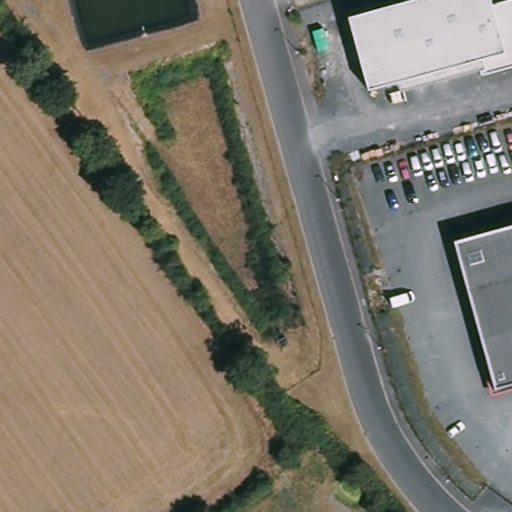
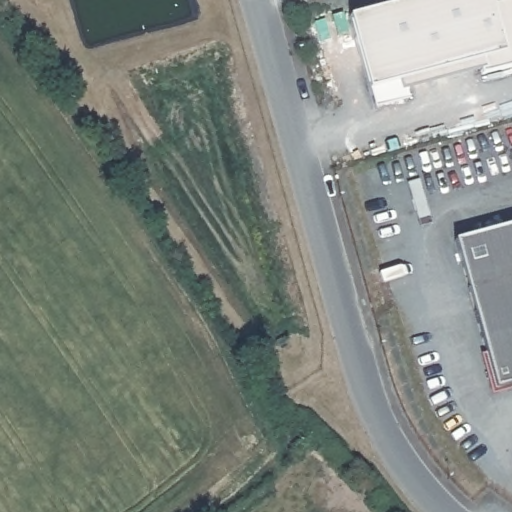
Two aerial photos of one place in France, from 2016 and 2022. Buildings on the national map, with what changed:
unchanged [(509,0),(512,0),(512,66),(480,74),(479,70),(401,91),(398,82),(367,91),(348,17),(414,0),(490,0),(491,5),(509,0)]
unchanged [(498,387),(457,241),(512,226),(512,384),(498,387)]

